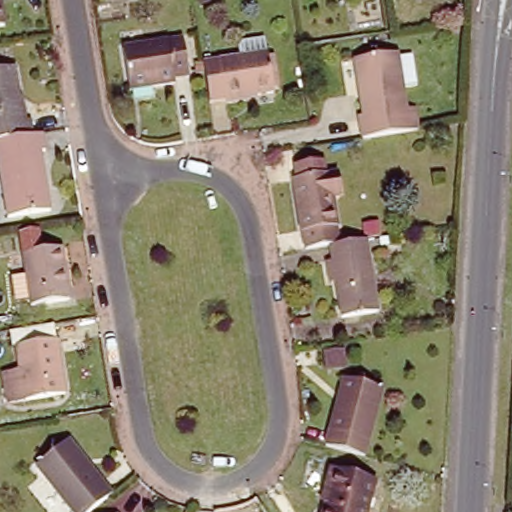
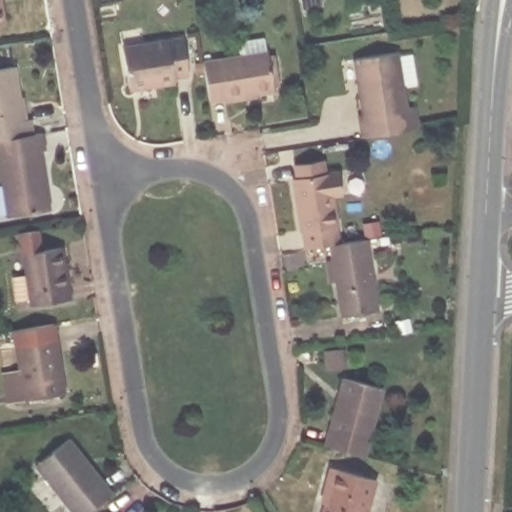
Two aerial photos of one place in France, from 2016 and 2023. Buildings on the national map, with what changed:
unchanged [(4,5),(7,25),(0,26),(0,0),(3,0),(4,5)]
unchanged [(123,44),(183,34),(189,70),(173,72),(174,79),(129,85),(123,44)]
unchanged [(211,104),(204,64),(266,54),(266,62),(273,61),(277,88),(271,89),(271,95),(211,104)]
unchanged [(358,135),(356,115),(361,115),(359,91),(361,91),(359,57),(399,55),(402,107),(414,107),(414,126),(358,135)]
unchanged [(13,67),(20,106),(24,106),(27,120),(30,119),(34,136),(0,142),(0,70),(13,67)]
unchanged [(43,135),(46,151),(37,152),(44,190),(48,190),(51,209),(8,216),(0,171),(0,142),(34,136),(43,135)]
unchanged [(308,247),(305,226),(303,226),(297,178),(300,178),(298,164),(329,160),(331,174),(338,173),(341,194),(336,195),(339,225),(338,225),(340,242),(334,243),(308,247)]
unchanged [(340,242),(371,237),(381,306),(344,312),(339,275),(336,258),(334,243),(340,242)]
unchanged [(31,254),(71,247),(78,297),(39,303),(38,298),(23,300),(19,276),(35,274),(31,254)]
unchanged [(16,370),(28,368),(25,347),(63,341),(71,392),(33,398),(21,400),(16,370)]
unchanged [(325,444),(346,371),(384,383),(363,454),(325,444)]
unchanged [(78,512),(40,463),(71,439),(115,495),(94,512),(78,512)]
unchanged [(328,488),(334,465),(381,480),(371,512),(327,512),(334,490),(328,488)]

